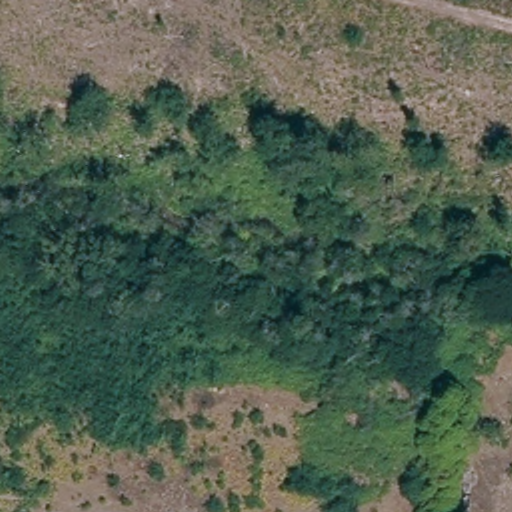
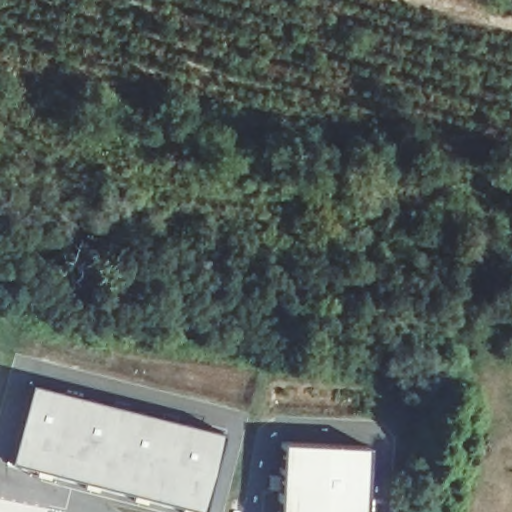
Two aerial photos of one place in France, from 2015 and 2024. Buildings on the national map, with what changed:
new [(222,434),(202,507),(11,458),(30,383),(222,434)]
new [(367,445),(367,512),(278,512),(281,441),(367,445)]

